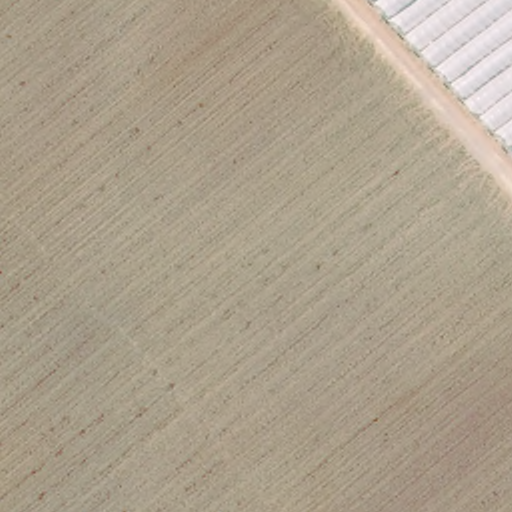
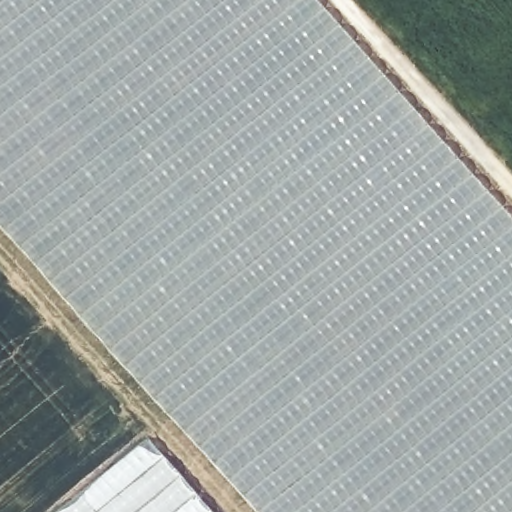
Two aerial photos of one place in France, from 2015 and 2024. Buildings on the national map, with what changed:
demolished [(368,58),(512,217),(512,512),(0,512),(0,0),(313,0),(368,58)]

